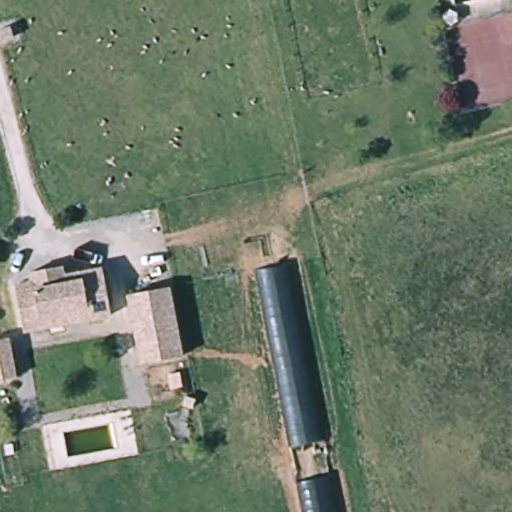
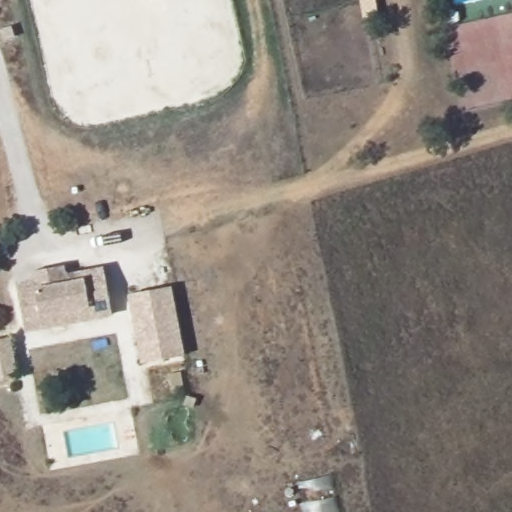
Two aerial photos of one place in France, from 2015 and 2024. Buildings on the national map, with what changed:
unchanged [(0,33),(0,29),(11,26),(14,37),(3,41),(0,33)]
new [(292,446),(258,270),(293,264),(327,440),(292,446)]
unchanged [(28,326),(25,306),(21,285),(38,282),(36,272),(67,266),(69,276),(86,273),(108,269),(110,282),(116,315),(77,323),(29,331),(28,326)]
unchanged [(174,287),(183,334),(187,356),(147,364),(144,345),(134,295),(174,287)]
unchanged [(13,339),(20,378),(0,381),(0,341),(13,339)]

